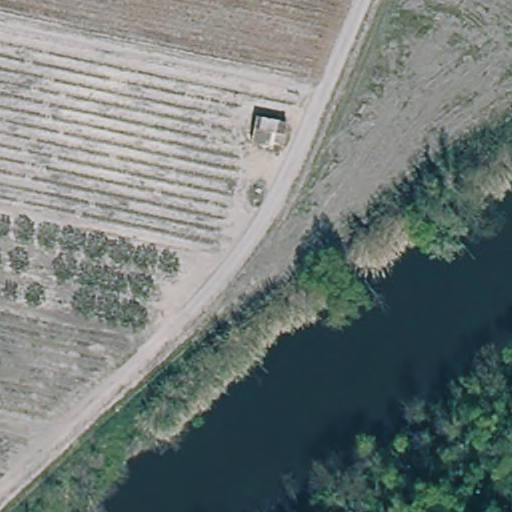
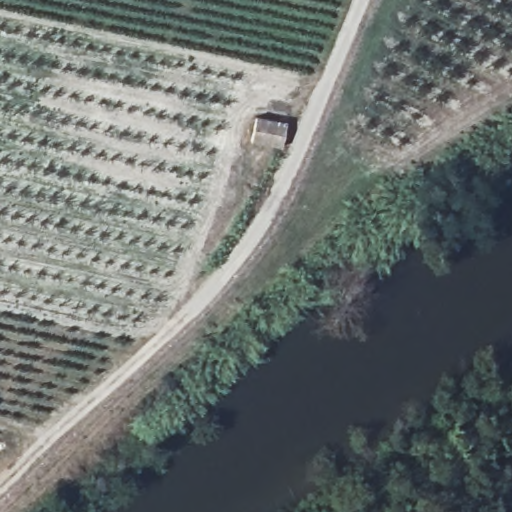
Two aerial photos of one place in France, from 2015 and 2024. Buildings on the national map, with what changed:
unchanged [(255,116),(280,121),(274,146),(248,140),(255,116)]

